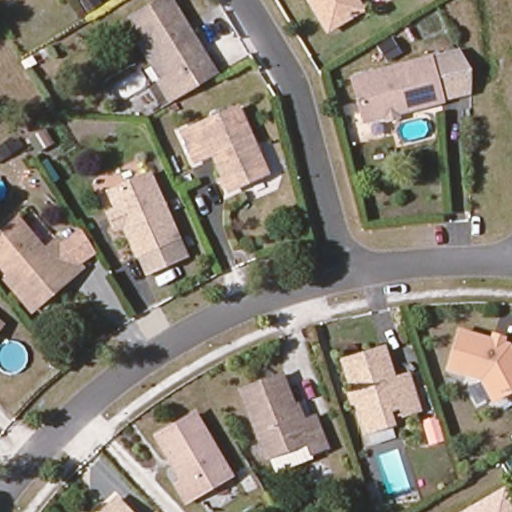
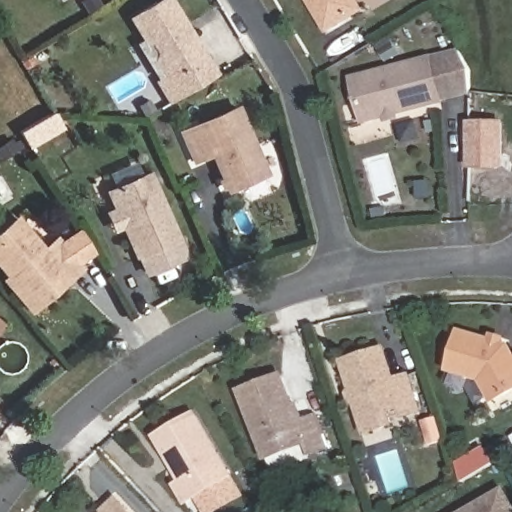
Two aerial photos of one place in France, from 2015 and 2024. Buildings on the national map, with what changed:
unchanged [(155,59),(157,52),(151,42),(143,39),(130,18),(161,0),(170,0),(215,74),(168,103),(158,87),(168,81),(155,59)]
unchanged [(360,14),(351,20),(326,35),(308,4),(309,0),(352,0),(360,14)]
unchanged [(429,58),(459,50),(470,72),(470,91),(439,99),(440,101),(363,121),(352,78),(429,58)]
unchanged [(192,161),(180,133),(236,107),(265,172),(227,190),(210,153),(192,161)]
new [(505,120),(505,168),(468,168),(469,120),(505,120)]
unchanged [(52,142),(35,152),(27,139),(43,129),(52,142)]
unchanged [(22,145),(0,161),(0,151),(17,138),(22,145)]
unchanged [(184,250),(147,267),(139,248),(135,250),(121,220),(114,223),(107,208),(114,204),(107,188),(148,169),(184,250)]
unchanged [(4,280),(8,276),(0,267),(0,232),(16,218),(43,250),(57,239),(61,244),(77,231),(92,249),(76,262),(81,267),(67,279),(30,310),(4,280)]
unchanged [(512,385),(492,395),(481,375),(448,364),(459,327),(491,337),(492,331),(501,334),(499,340),(507,342),(512,350),(512,385)]
unchanged [(383,349),(393,380),(407,376),(417,410),(402,414),(400,406),(387,411),(391,424),(365,432),(342,362),(383,349)]
unchanged [(271,475),(265,458),(239,391),(280,375),(300,422),(314,417),(326,448),(311,454),(313,459),(271,475)]
unchanged [(155,437),(194,415),(230,476),(185,502),(175,486),(181,482),(169,461),(155,437)]
unchanged [(512,501),(512,512),(460,512),(503,485),(512,501)]
unchanged [(127,512),(102,512),(115,499),(127,512)]

